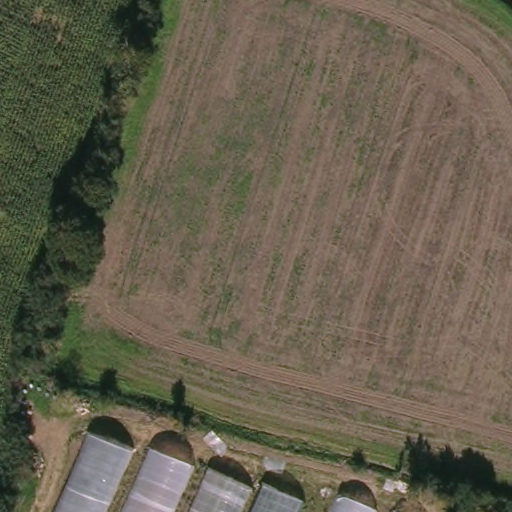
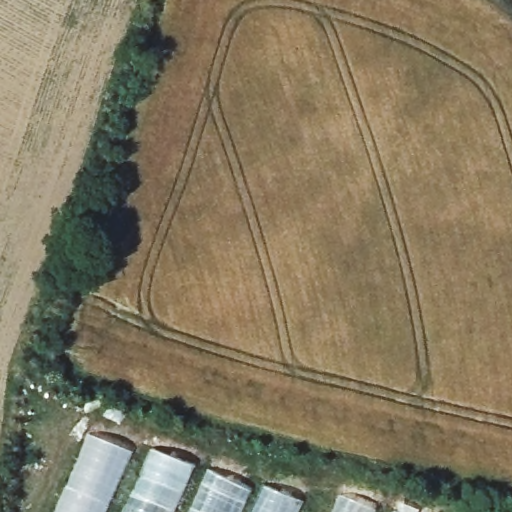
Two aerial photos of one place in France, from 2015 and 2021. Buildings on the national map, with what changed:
unchanged [(86,432),(146,455),(150,448),(192,466),(172,512),(52,512),(86,432)]
unchanged [(207,460),(253,481),(239,512),(185,512),(207,460)]
unchanged [(262,486),(300,502),(295,512),(251,512),(262,486)]
unchanged [(336,496),(369,512),(329,512),(336,496)]

